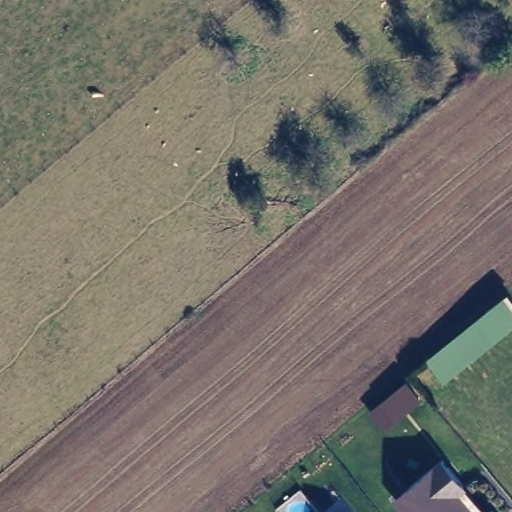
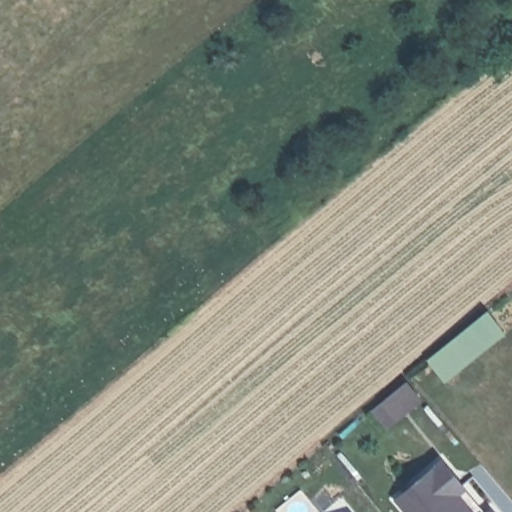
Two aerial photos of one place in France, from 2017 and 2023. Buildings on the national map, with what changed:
unchanged [(512,303),(512,325),(446,380),(428,360),(504,295),(512,303)]
unchanged [(422,400),(395,420),(379,403),(405,382),(422,400)]
unchanged [(489,507),(493,512),(402,512),(391,499),(439,458),(483,511),(489,507)]

